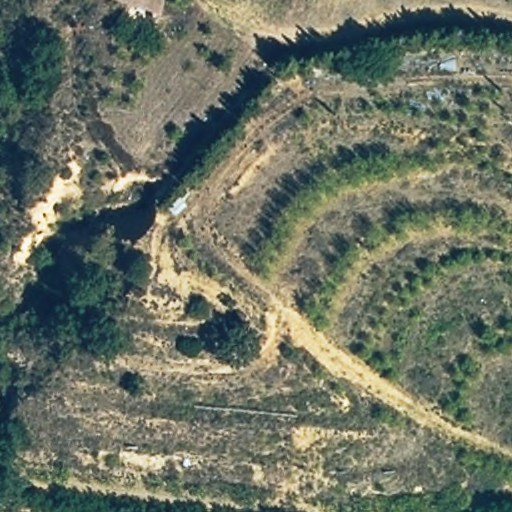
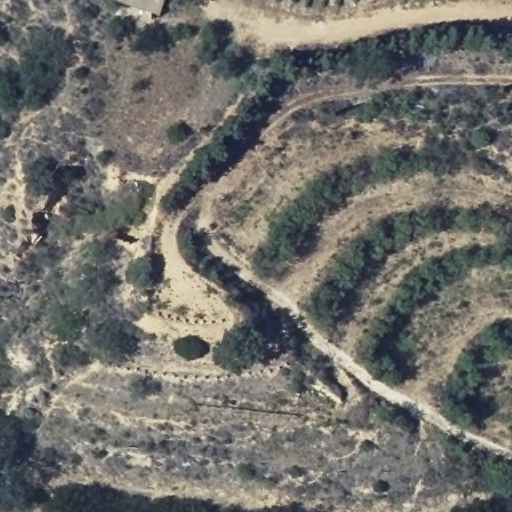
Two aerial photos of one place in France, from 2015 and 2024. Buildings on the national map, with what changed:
unchanged [(108,0),(170,0),(162,19),(108,0)]

